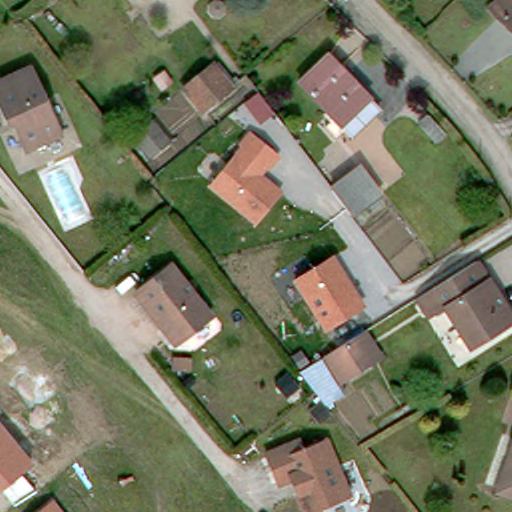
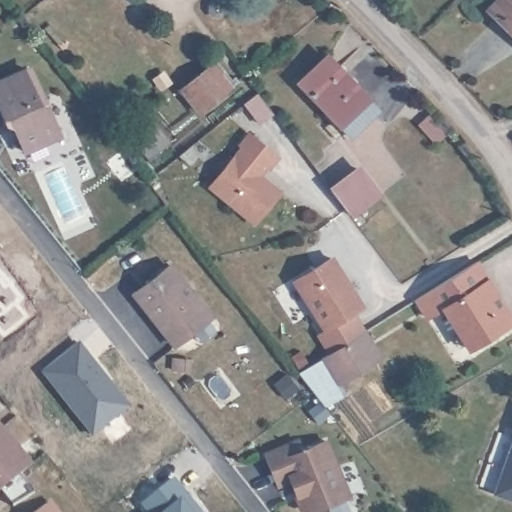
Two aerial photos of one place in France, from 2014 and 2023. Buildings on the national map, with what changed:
unchanged [(493,9),(502,0),(512,0),(512,28),(493,9)]
unchanged [(351,137),(306,91),(300,84),(327,57),(379,111),(351,137)]
unchanged [(214,62),(230,82),(207,102),(200,107),(184,87),(191,81),(214,62)]
unchanged [(12,130),(0,104),(0,88),(33,72),(47,103),(50,102),(67,139),(30,156),(17,127),(12,130)]
unchanged [(432,114),(452,134),(442,145),(421,124),(432,114)]
unchanged [(150,161),(132,139),(153,121),(171,143),(150,161)]
unchanged [(209,186),(249,132),(280,156),(270,170),(265,167),(259,174),(282,192),(255,225),(209,186)]
unchanged [(365,171),(383,196),(357,217),(337,192),(365,171)]
unchanged [(292,282),(332,256),(363,306),(322,333),(292,282)]
unchanged [(490,287),(498,300),(504,297),(512,309),(512,328),(480,348),(468,329),(463,332),(448,308),(434,317),(422,301),(483,263),(495,283),(490,287)]
unchanged [(147,310),(135,295),(171,266),(209,312),(213,317),(195,331),(182,342),(177,346),(147,310)]
unchanged [(327,360),(369,333),(385,360),(343,387),(327,360)]
new [(77,346),(90,362),(87,364),(105,385),(107,383),(125,407),(90,435),(42,372),(77,346)]
unchanged [(323,362),(345,398),(333,409),(322,395),(305,373),(323,362)]
unchanged [(22,475),(35,492),(15,506),(1,490),(0,491),(0,423),(34,465),(22,475)]
unchanged [(300,512),(294,498),(298,496),(293,480),(276,487),(265,452),(298,438),(301,447),(330,437),(352,497),(305,512),(300,512)]
unchanged [(503,497),(512,473),(512,501),(503,497)]
new [(175,477),(205,512),(147,512),(140,504),(175,477)]
unchanged [(34,512),(52,498),(62,512),(34,512)]

